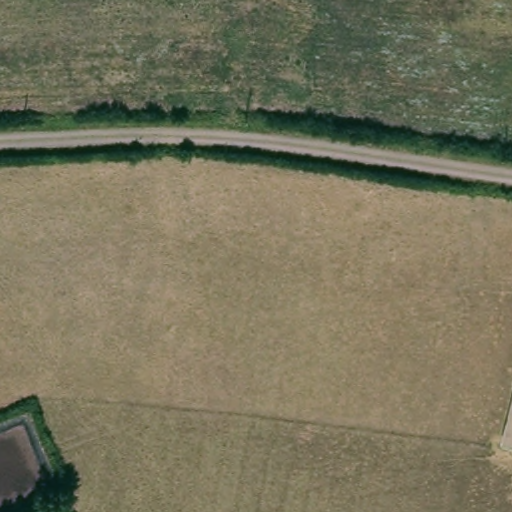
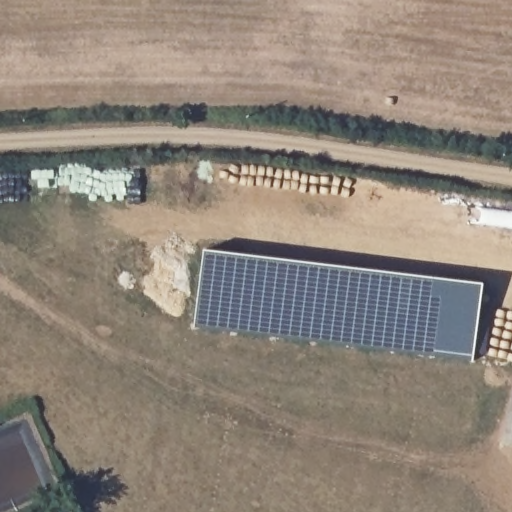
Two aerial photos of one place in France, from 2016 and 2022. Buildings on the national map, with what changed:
new [(473,359),(194,326),(202,250),(480,284),(473,359)]
unchanged [(499,444),(512,392),(512,447),(499,444)]

